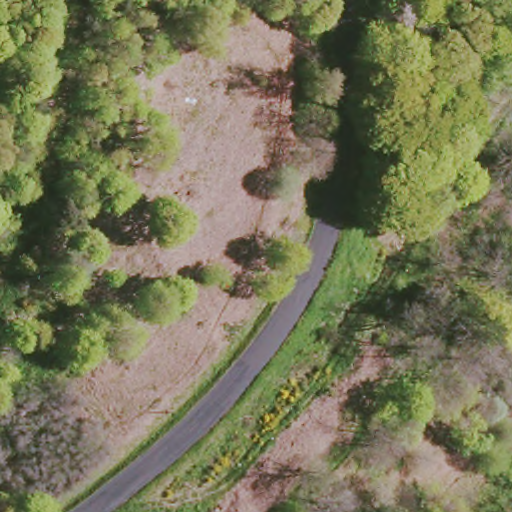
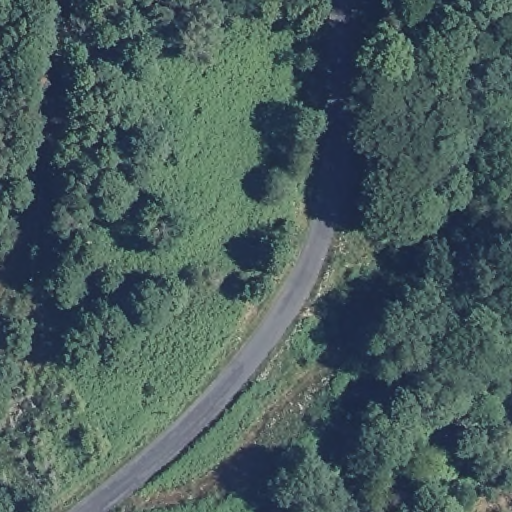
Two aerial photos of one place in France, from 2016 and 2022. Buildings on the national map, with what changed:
unchanged [(33,256),(27,273),(11,268),(18,251),(33,256)]

